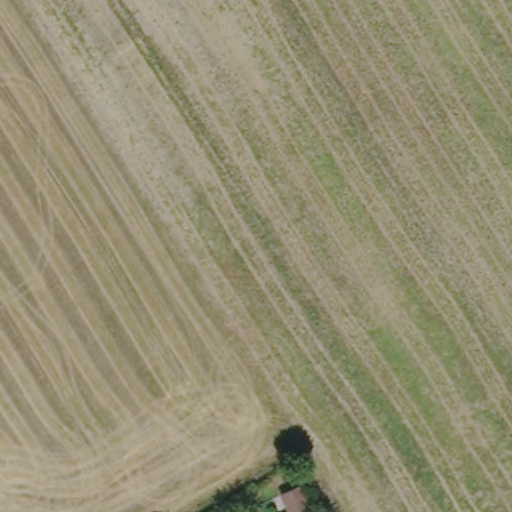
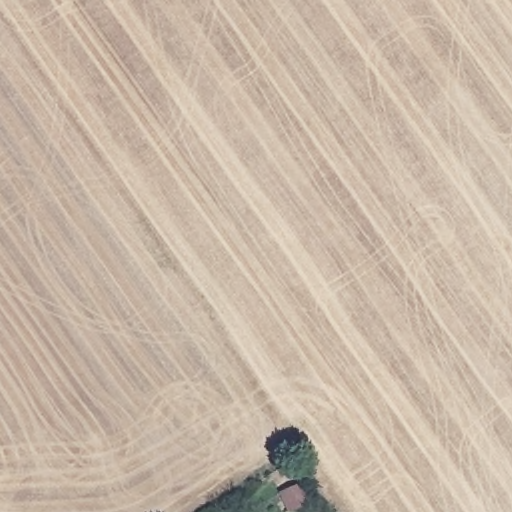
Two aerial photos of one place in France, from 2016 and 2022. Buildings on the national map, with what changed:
unchanged [(300,486),(307,504),(292,511),(283,494),(300,486)]

